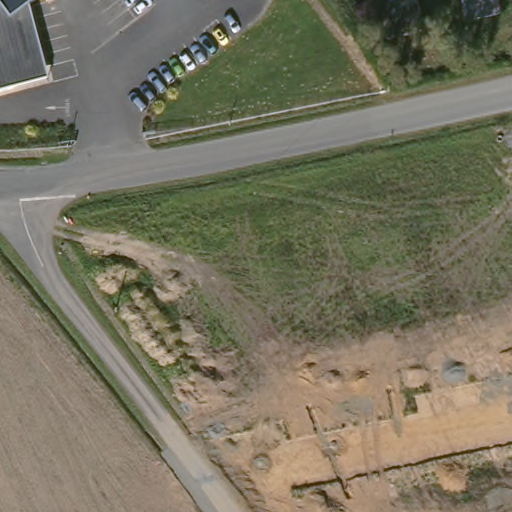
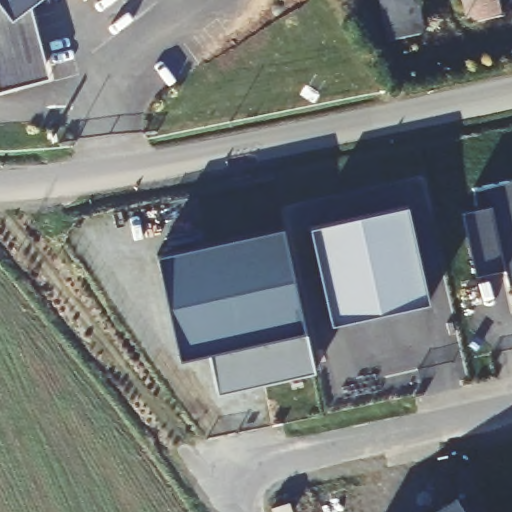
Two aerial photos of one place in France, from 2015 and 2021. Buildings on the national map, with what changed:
unchanged [(31,4),(46,63),(13,85),(0,88),(0,0),(36,0),(31,4)]
unchanged [(424,22),(389,29),(384,0),(420,0),(424,22)]
unchanged [(508,11),(469,20),(465,0),(506,0),(508,11)]
new [(503,270),(475,275),(463,212),(477,209),(473,190),(512,182),(512,285),(507,286),(503,270)]
new [(429,305),(331,325),(309,228),(407,206),(429,305)]
new [(208,355),(178,360),(156,257),(280,231),(309,376),(216,396),(208,355)]

